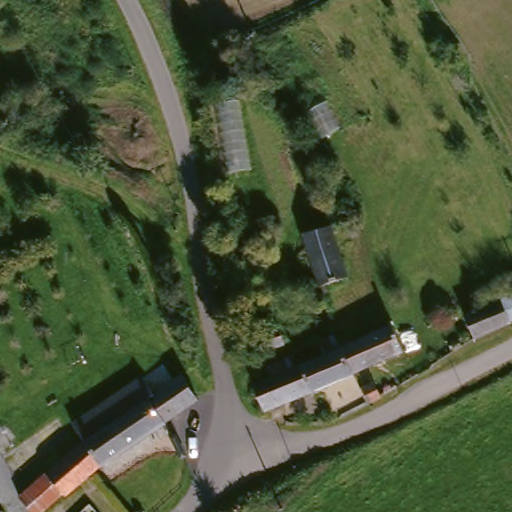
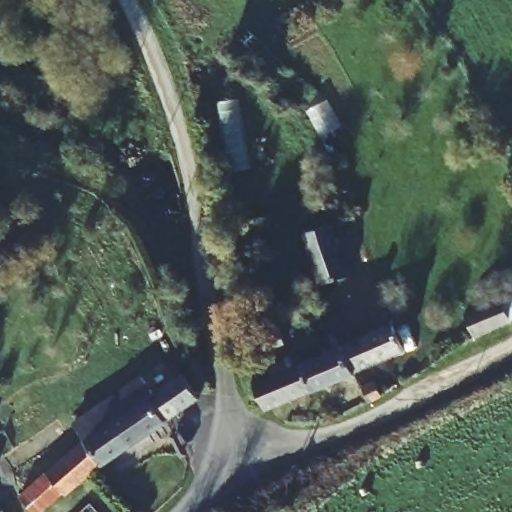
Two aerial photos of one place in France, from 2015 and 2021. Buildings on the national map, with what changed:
unchanged [(331,231),(343,285),(334,287),(313,292),(301,239),(326,233),(331,231)]
unchanged [(512,300),(512,327),(479,340),(467,312),(510,295),(512,300)]
unchanged [(392,320),(404,343),(351,370),(339,343),(392,320)]
unchanged [(339,343),(351,370),(353,373),(301,396),(286,366),(323,350),(339,343)]
unchanged [(301,396),(268,412),(251,382),(286,366),(301,396)]
unchanged [(71,443),(78,438),(69,426),(135,377),(144,389),(171,369),(173,371),(189,396),(92,468),(71,443)]
unchanged [(391,400),(372,410),(364,391),(381,383),(391,400)]
unchanged [(71,443),(92,468),(85,474),(55,496),(49,500),(34,512),(30,512),(14,490),(18,486),(38,470),(71,443)]

